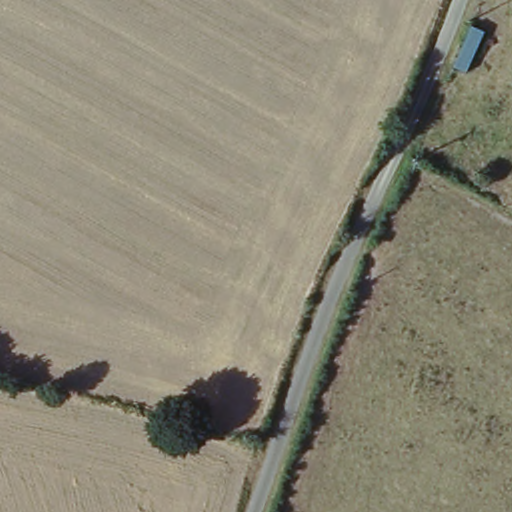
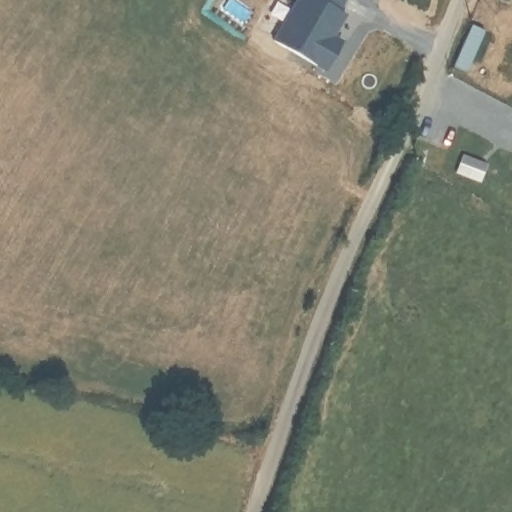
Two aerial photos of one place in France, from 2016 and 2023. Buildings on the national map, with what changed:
new [(327,41),(336,45),(325,65),(279,41),(297,0),(348,0),(327,41)]
unchanged [(480,34),(463,73),(450,67),(467,28),(480,34)]

